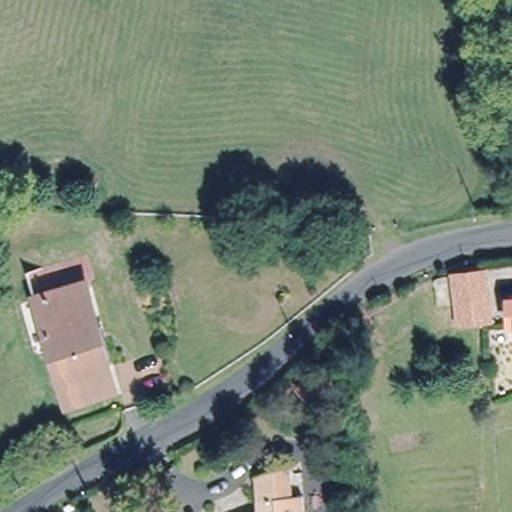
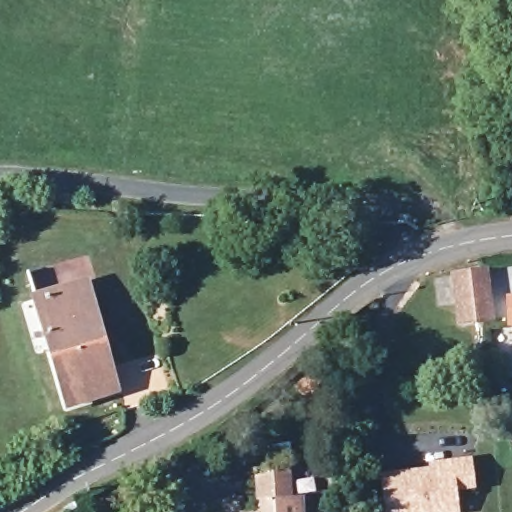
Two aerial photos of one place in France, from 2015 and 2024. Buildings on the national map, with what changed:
unchanged [(468,269),(475,318),(446,322),(439,273),(468,269)]
unchanged [(117,391),(68,405),(36,298),(84,283),(117,391)]
unchanged [(505,325),(503,298),(512,298),(512,325),(505,325)]
new [(459,512),(384,512),(380,472),(430,466),(428,461),(472,456),(475,488),(457,491),(459,512)]
unchanged [(290,463),(292,495),(301,495),(302,512),(257,512),(255,476),(290,463)]

